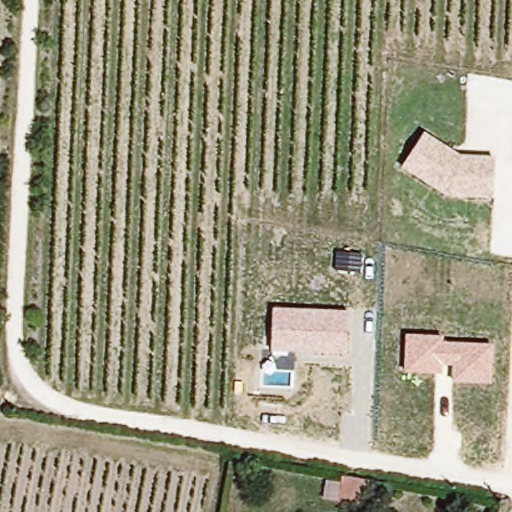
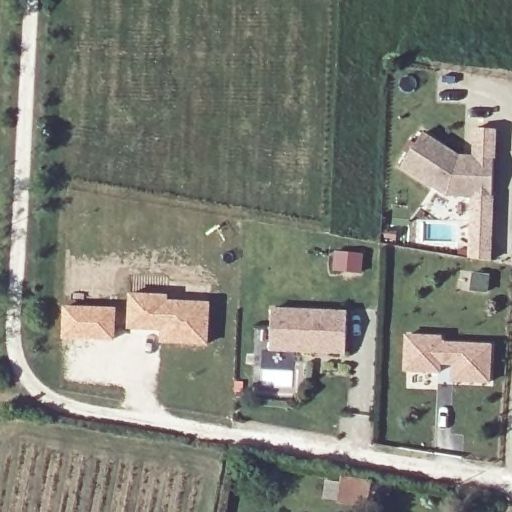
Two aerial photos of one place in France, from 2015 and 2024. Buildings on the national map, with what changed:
unchanged [(460,156),(495,158),(494,200),(447,197),(400,167),(425,132),(460,156)]
new [(128,291),(169,293),(169,297),(211,300),(209,345),(159,342),(160,331),(127,330),(128,291)]
new [(63,304),(117,306),(115,341),(61,338),(63,304)]
unchanged [(349,311),(347,354),(271,351),(272,309),(349,311)]
unchanged [(444,335),(444,343),(491,343),(491,383),(451,382),(452,365),(443,364),(443,373),(403,373),(404,335),(444,335)]
unchanged [(383,499),(350,493),(353,474),(385,480),(383,499)]

